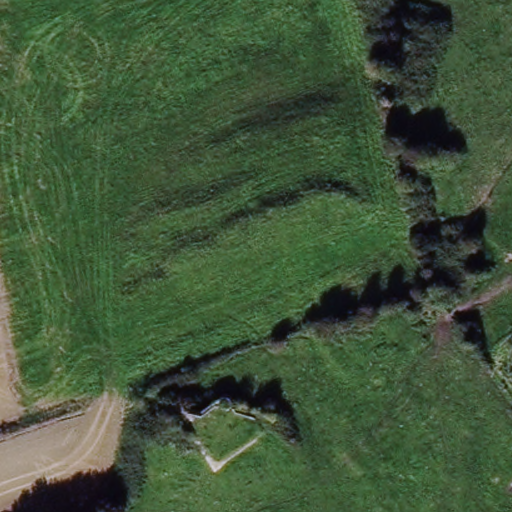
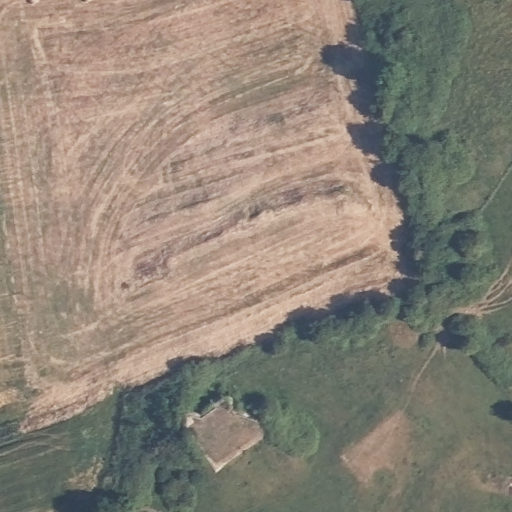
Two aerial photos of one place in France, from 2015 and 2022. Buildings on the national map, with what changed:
unchanged [(235,411),(262,417),(271,430),(214,469),(188,431),(183,411),(200,415),(227,395),(235,411)]

